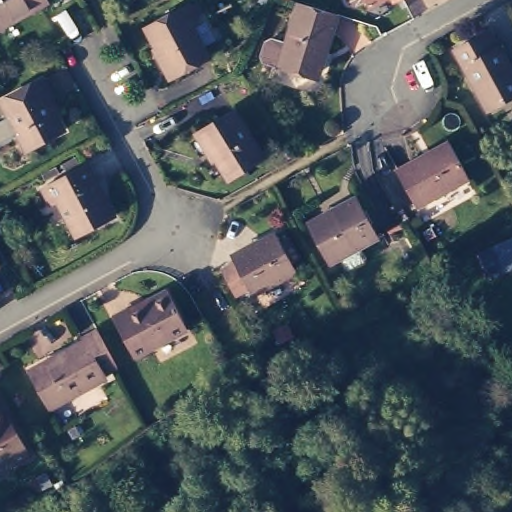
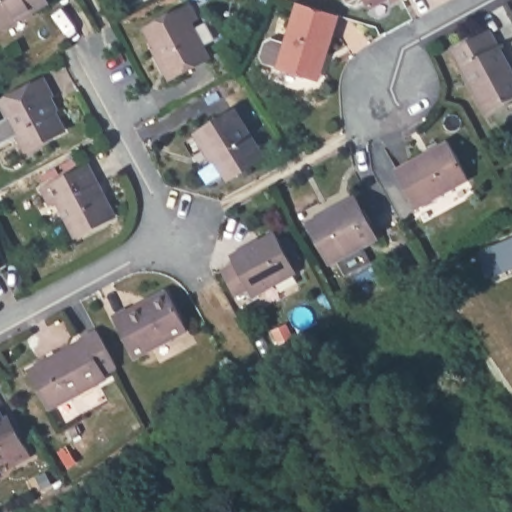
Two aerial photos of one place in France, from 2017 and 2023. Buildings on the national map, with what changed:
unchanged [(46,3),(0,29),(0,0),(44,0),(46,3)]
unchanged [(347,2),(345,0),(365,0),(355,5),(347,2)]
unchanged [(368,7),(365,0),(382,0),(368,7)]
unchanged [(312,78),(277,68),(297,3),(337,15),(326,52),(317,80),(312,78)]
unchanged [(172,78),(145,29),(182,9),(189,5),(196,19),(190,22),(208,59),(172,78)]
unchanged [(489,31),(512,73),(512,98),(487,111),(454,50),(489,31)]
unchanged [(43,80),(50,95),(46,97),(63,131),(26,150),(0,102),(43,80)]
unchanged [(240,111),(268,157),(233,180),(204,133),(240,111)]
unchanged [(474,180),(421,209),(400,170),(453,141),(474,180)]
unchanged [(114,217),(77,237),(58,201),(51,205),(42,189),(50,185),(87,165),(114,217)]
unchanged [(363,258),(350,265),(345,264),(340,254),(330,259),(311,222),(308,218),(324,210),(355,192),(377,234),(359,243),(365,254),(363,258)]
unchanged [(227,270),(240,263),(237,257),(279,234),(285,244),(293,240),(303,258),(295,262),(300,273),(258,296),(254,289),(241,296),(227,270)]
unchanged [(503,272),(491,277),(480,252),(492,247),(503,272)]
unchanged [(132,307),(135,313),(149,306),(146,300),(165,290),(187,330),(133,357),(112,318),(132,307)]
unchanged [(102,373),(105,377),(50,408),(30,371),(84,342),(82,338),(97,330),(115,366),(102,373)]
unchanged [(5,407),(0,410),(0,398),(5,407)]
unchanged [(3,416),(8,413),(29,451),(13,460),(9,453),(0,458),(0,410),(3,416)]

